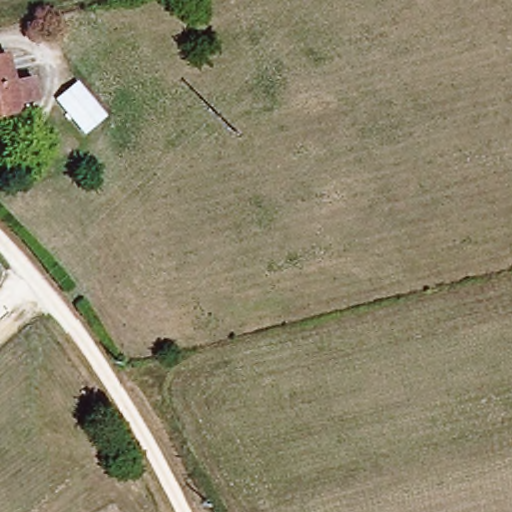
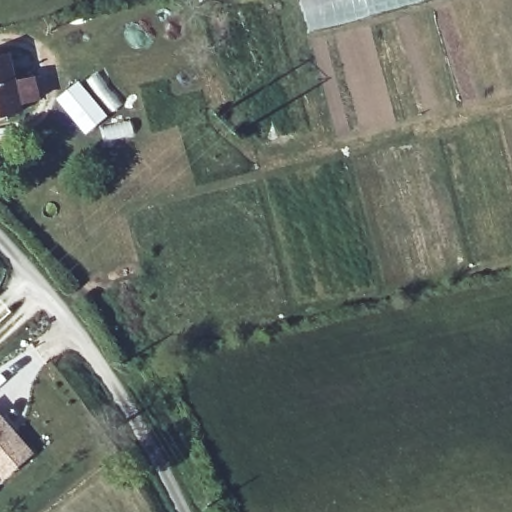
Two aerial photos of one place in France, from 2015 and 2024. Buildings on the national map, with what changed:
new [(307,32),(300,0),(423,0),(307,32)]
unchanged [(17,112),(0,116),(0,51),(2,50),(23,45),(36,100),(27,102),(15,105),(17,112)]
unchanged [(101,106),(106,118),(84,131),(56,99),(67,89),(61,79),(71,75),(82,88),(98,80),(110,98),(101,106)]
new [(34,452),(3,480),(0,476),(0,413),(34,452)]

